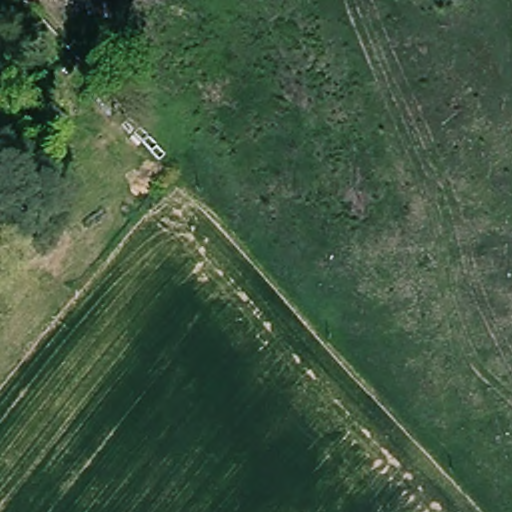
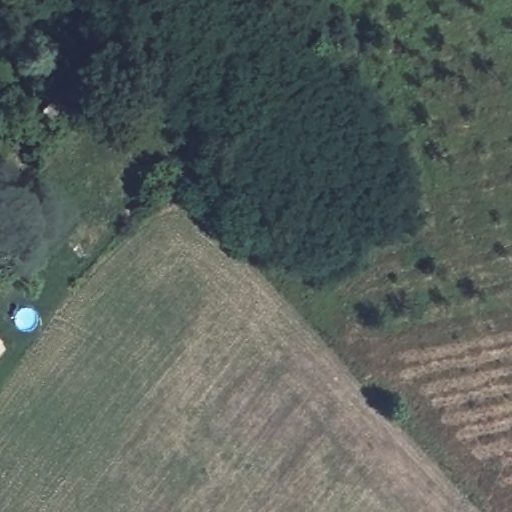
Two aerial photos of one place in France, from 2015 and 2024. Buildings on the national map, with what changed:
[]

